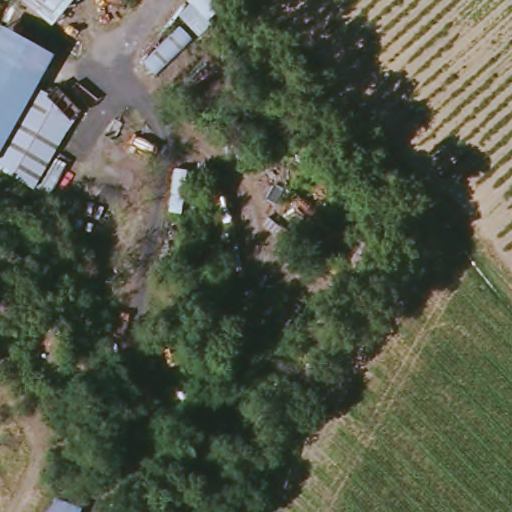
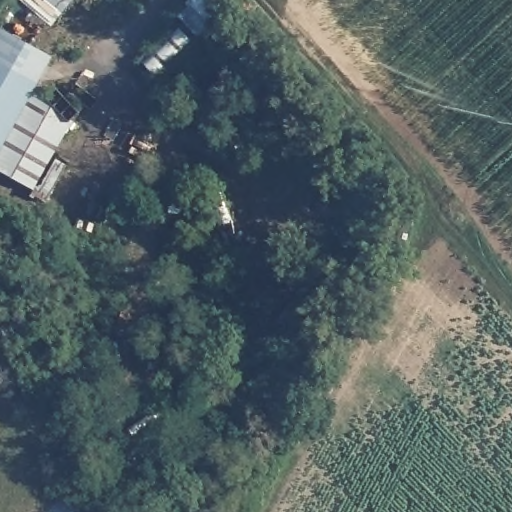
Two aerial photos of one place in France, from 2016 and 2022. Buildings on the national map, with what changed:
unchanged [(52,29),(22,3),(5,28),(0,26),(0,11),(9,0),(75,0),(52,29)]
unchanged [(39,81),(74,123),(57,152),(82,169),(64,207),(32,189),(0,171),(0,36),(5,28),(53,58),(39,81)]
unchanged [(79,512),(49,512),(55,499),(79,512)]

